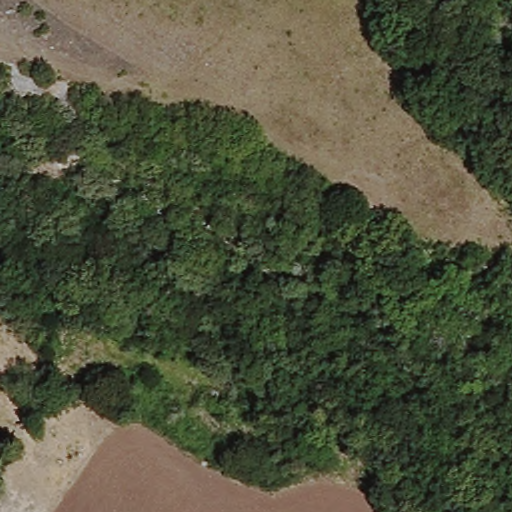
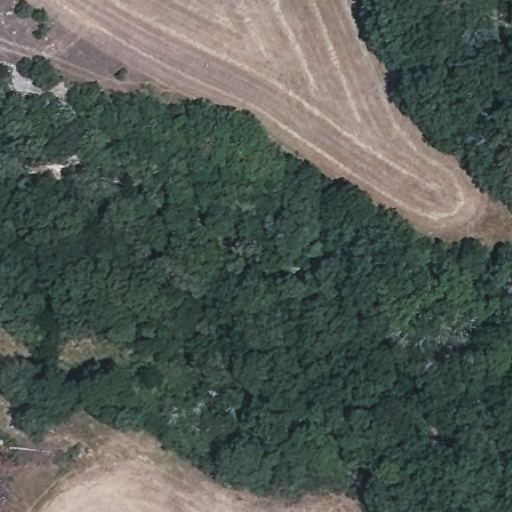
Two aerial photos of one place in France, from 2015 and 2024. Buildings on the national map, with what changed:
[]

